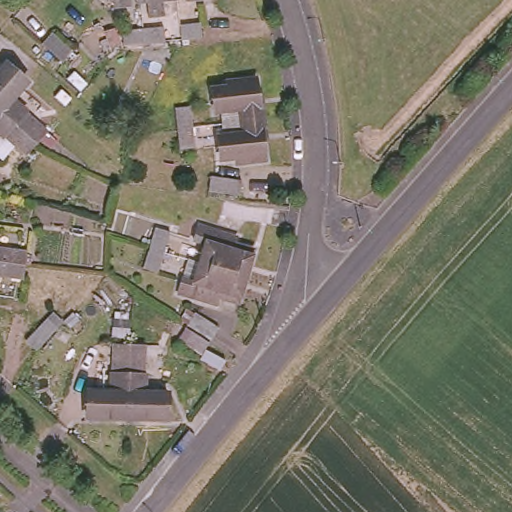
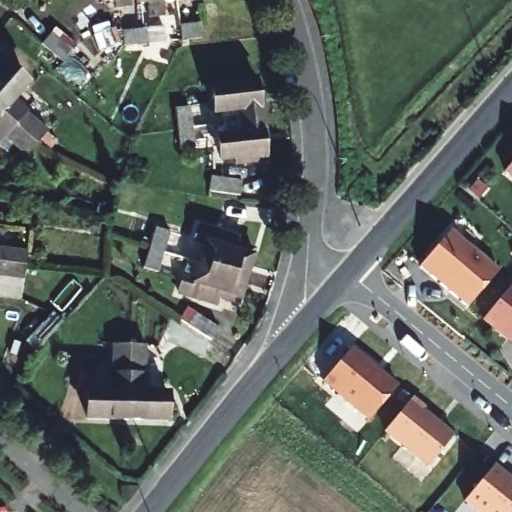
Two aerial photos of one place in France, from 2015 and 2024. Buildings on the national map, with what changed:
unchanged [(109,4),(108,0),(124,0),(124,2),(109,4)]
unchanged [(142,13),(141,0),(159,0),(160,11),(142,13)]
unchanged [(201,38),(180,40),(178,26),(201,24),(201,38)]
unchanged [(122,46),(121,31),(142,29),(163,27),(165,40),(145,43),(123,45),(122,46)]
unchanged [(25,59),(35,48),(55,66),(51,70),(45,76),(33,66),(24,78),(5,61),(15,50),(16,51),(25,59)]
unchanged [(20,83),(6,99),(20,112),(20,114),(41,132),(30,144),(0,118),(0,67),(1,66),(20,83)]
unchanged [(221,124),(220,113),(214,113),(211,90),(226,89),(226,84),(255,80),(259,120),(221,124)]
unchanged [(178,149),(176,130),(173,109),(190,107),(191,128),(193,148),(178,149)]
unchanged [(20,156),(0,139),(0,118),(30,144),(20,156)]
unchanged [(263,159),(235,163),(235,159),(219,159),(217,139),(222,138),(221,124),(259,120),(263,159)]
new [(505,170),(512,162),(512,177),(505,170)]
unchanged [(239,181),(237,195),(208,192),(210,178),(239,181)]
new [(465,305),(416,262),(450,224),(498,265),(465,305)]
unchanged [(142,268),(148,248),(150,246),(155,229),(168,233),(162,253),(156,272),(142,268)]
unchanged [(192,246),(196,232),(235,243),(232,250),(252,256),(244,282),(198,268),(205,249),(192,246)]
unchanged [(19,266),(0,264),(0,249),(21,252),(19,266)]
unchanged [(16,279),(0,278),(0,264),(19,266),(16,279)]
unchanged [(244,282),(235,309),(216,303),(214,310),(176,298),(180,284),(192,287),(198,268),(244,282)]
new [(512,284),(512,344),(483,321),(512,284)]
unchanged [(194,314),(196,313),(217,328),(208,340),(180,321),(187,309),(194,314)]
unchanged [(35,353),(24,343),(50,314),(61,324),(35,353)]
demolished [(206,346),(199,356),(169,336),(177,325),(206,346)]
new [(371,363),(371,367),(376,371),(378,369),(395,383),(366,417),(320,378),(350,344),(371,363)]
unchanged [(85,418),(86,393),(107,393),(110,346),(127,346),(125,419),(85,418)]
unchanged [(142,393),(165,394),(165,421),(125,419),(127,346),(143,346),(142,393)]
new [(384,431),(412,398),(423,406),(421,410),(452,435),(425,467),(384,431)]
new [(465,503),(495,465),(512,478),(512,507),(508,512),(478,512),(465,503)]

